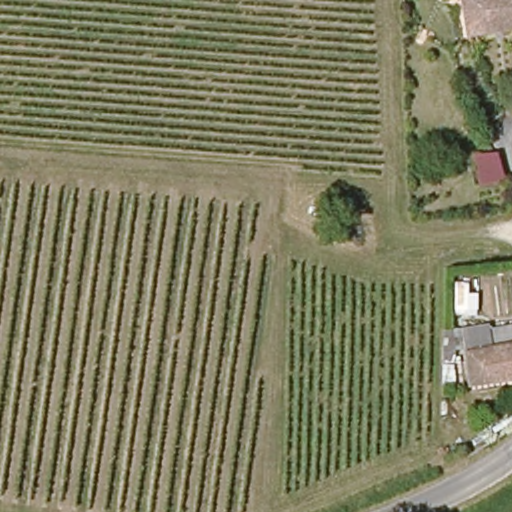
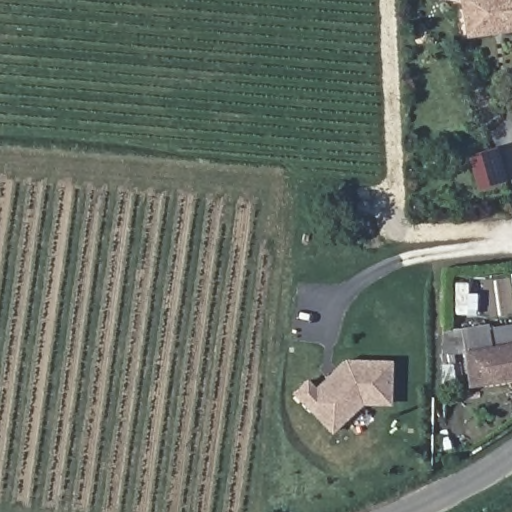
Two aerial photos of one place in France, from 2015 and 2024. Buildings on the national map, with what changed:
unchanged [(465,33),(460,0),(512,0),(512,24),(465,33)]
unchanged [(468,386),(461,330),(487,328),(490,348),(512,345),(512,380),(468,386)]
new [(362,404),(332,433),(292,393),(306,378),(314,387),(343,359),(391,360),(390,405),(362,404)]

